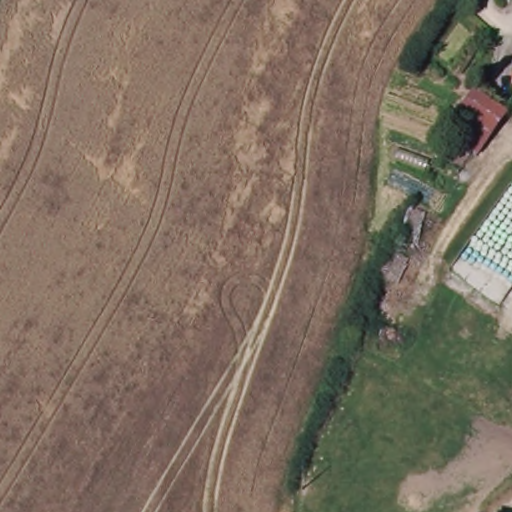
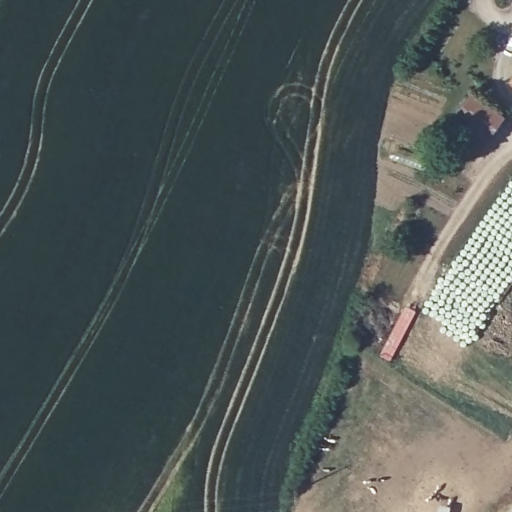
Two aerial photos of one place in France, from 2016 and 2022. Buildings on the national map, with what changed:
unchanged [(510,115),(481,156),(448,133),(478,92),(510,115)]

